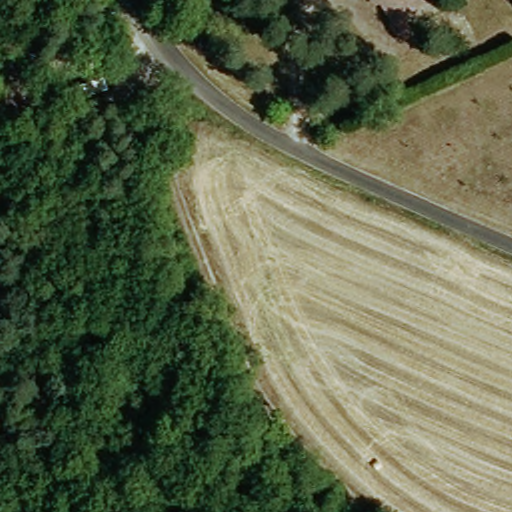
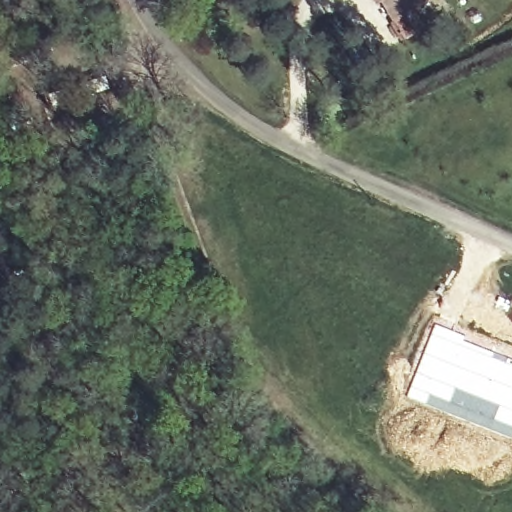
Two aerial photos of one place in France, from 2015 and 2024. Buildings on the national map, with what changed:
unchanged [(438,5),(410,20),(407,16),(400,19),(394,11),(386,15),(380,7),(377,7),(374,0),(435,0),(438,5)]
new [(470,334),(512,354),(512,439),(404,397),(435,319),(470,334)]

